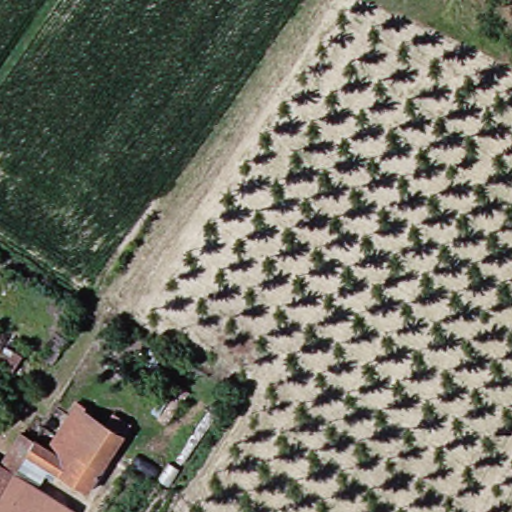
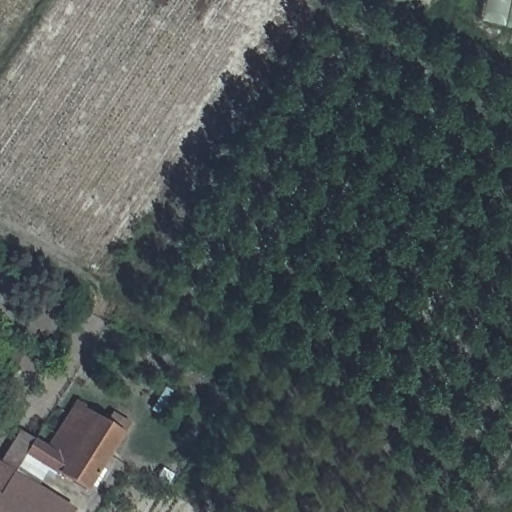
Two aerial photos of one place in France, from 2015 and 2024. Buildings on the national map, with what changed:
new [(480,21),(484,0),(512,0),(512,32),(480,21)]
unchanged [(43,447),(68,406),(105,429),(109,423),(116,429),(69,511),(45,496),(56,473),(21,452),(30,439),(43,447)]
unchanged [(0,484),(0,468),(8,473),(0,484)]
unchanged [(45,496),(69,511),(68,512),(0,512),(0,484),(8,473),(45,496)]

